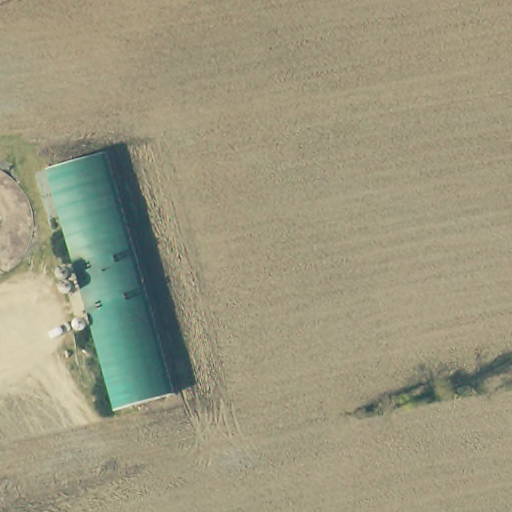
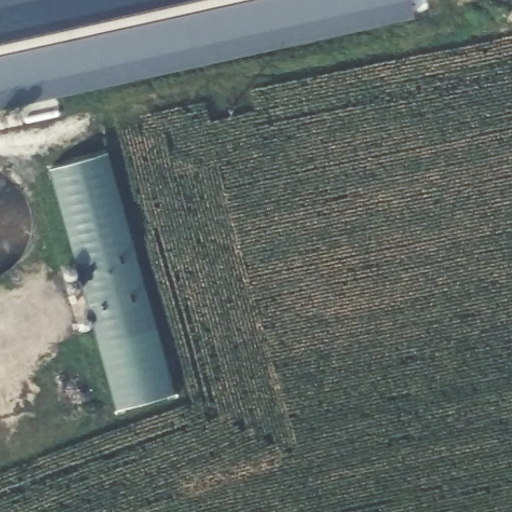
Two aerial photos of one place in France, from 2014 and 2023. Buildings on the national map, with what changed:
new [(410,0),(414,16),(0,108),(0,0),(410,0)]
unchanged [(125,144),(177,398),(115,411),(63,157),(125,144)]

